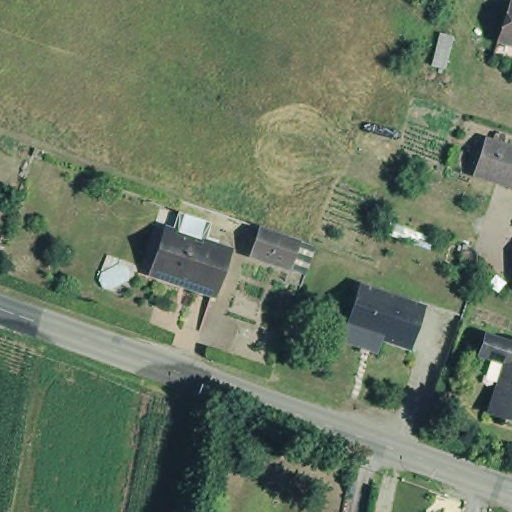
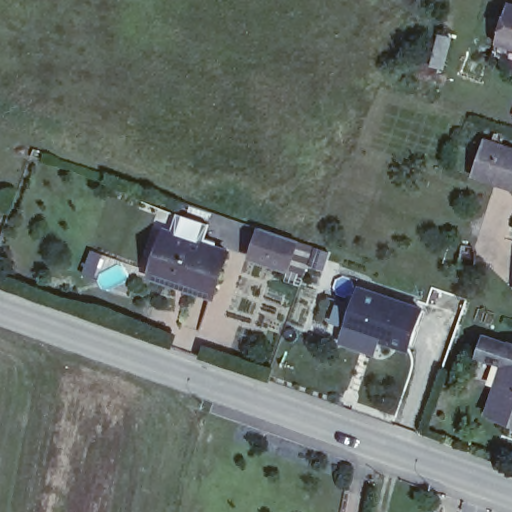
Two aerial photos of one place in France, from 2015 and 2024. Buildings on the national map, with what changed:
unchanged [(505,36),(509,25),(512,14),(512,55),(499,51),(505,36)]
unchanged [(493,168),(477,163),(487,135),(488,134),(503,139),(512,142),(512,180),(491,173),(493,168)]
unchanged [(169,222),(226,242),(219,261),(162,241),(169,222)]
unchanged [(287,271),(248,258),(257,230),(265,232),(297,243),(287,271)]
unchanged [(219,261),(210,287),(187,279),(189,273),(154,261),(162,241),(219,261)]
unchanged [(343,333),(347,319),(361,280),(425,301),(412,341),(382,331),(377,345),(343,333)]
unchanged [(498,369),(470,359),(478,336),(507,346),(512,347),(512,426),(482,416),(498,369)]

